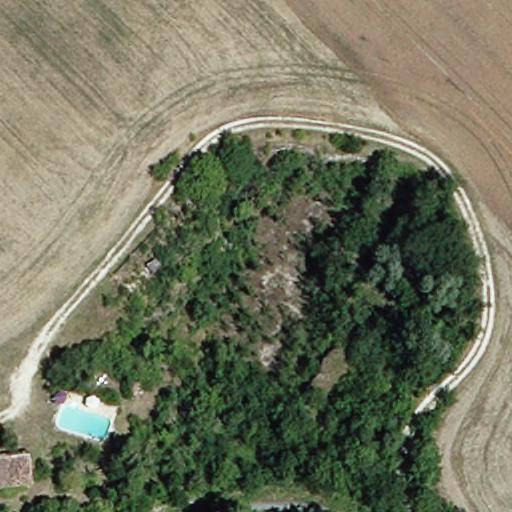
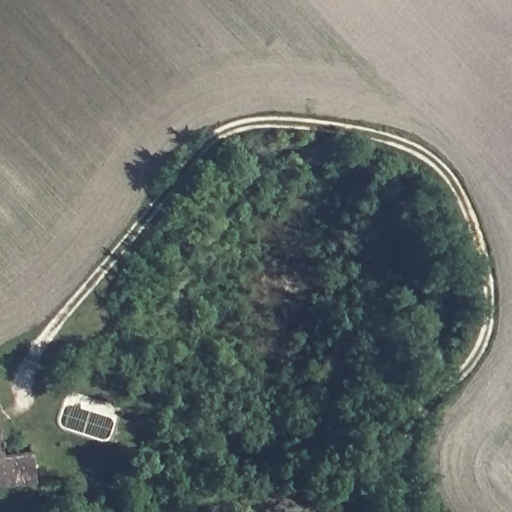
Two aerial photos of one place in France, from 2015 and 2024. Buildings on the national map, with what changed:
unchanged [(28,490),(0,493),(0,463),(24,461),(28,490)]

